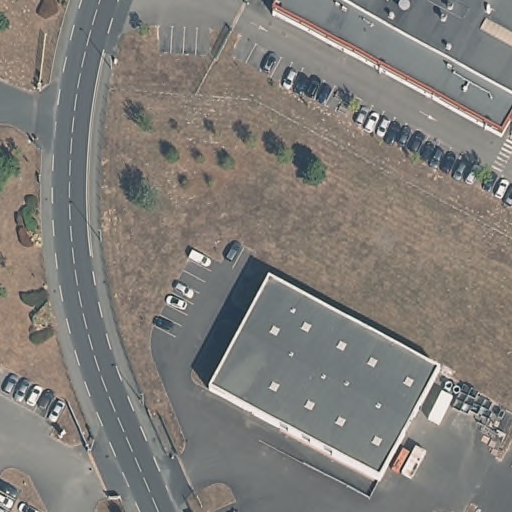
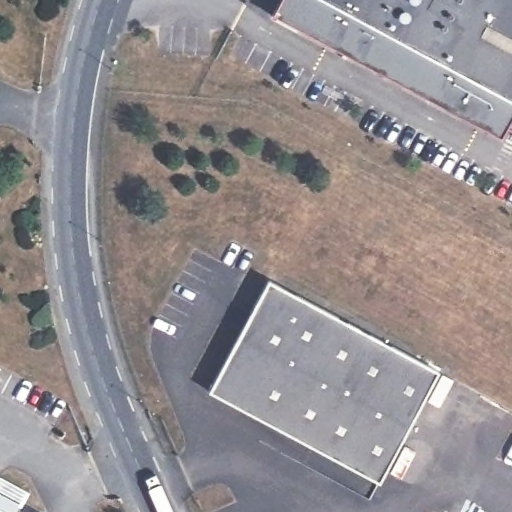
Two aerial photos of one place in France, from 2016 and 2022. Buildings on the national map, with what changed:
unchanged [(504,139),(276,16),(284,0),(512,0),(512,124),(504,139)]
unchanged [(435,370),(376,481),(205,389),(265,279),(435,370)]

